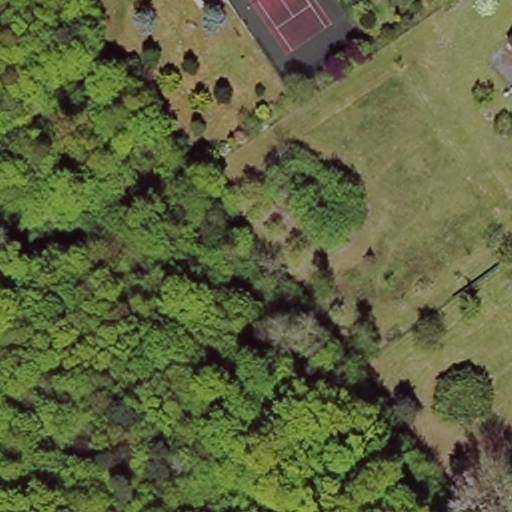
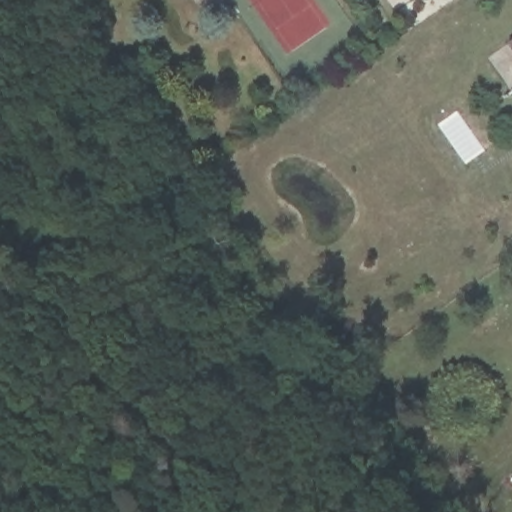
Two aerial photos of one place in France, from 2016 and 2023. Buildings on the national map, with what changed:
unchanged [(512,38),(512,44),(510,40),(512,38)]

